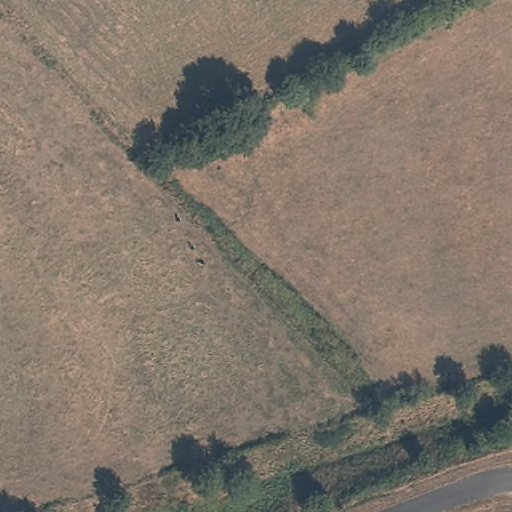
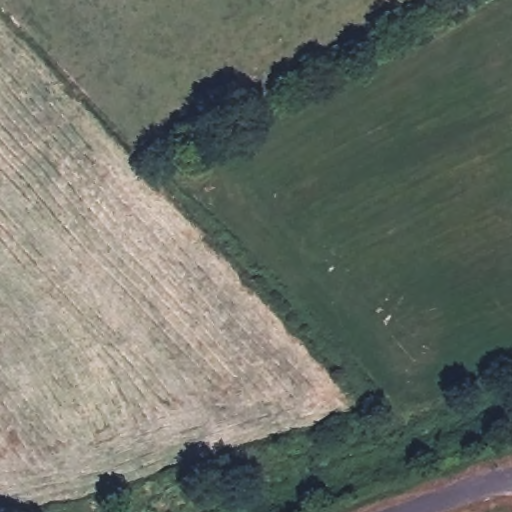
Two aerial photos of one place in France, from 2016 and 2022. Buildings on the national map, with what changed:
[]

